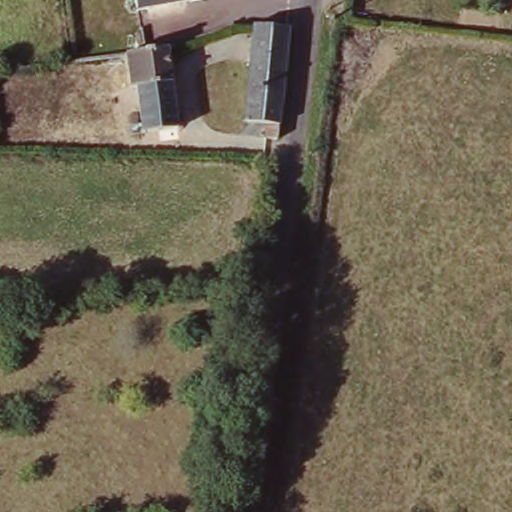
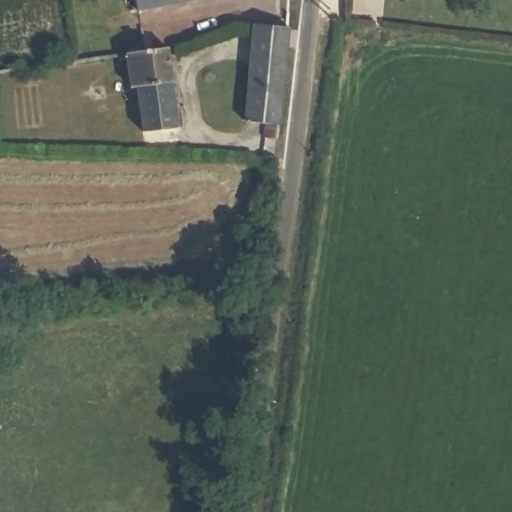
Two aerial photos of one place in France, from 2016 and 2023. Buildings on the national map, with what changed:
unchanged [(140,9),(139,0),(200,0),(140,9)]
unchanged [(263,139),(265,124),(246,124),(255,28),(289,30),(277,141),(263,139)]
unchanged [(182,130),(149,134),(142,88),(134,89),(129,55),(146,52),(172,48),(182,130)]

